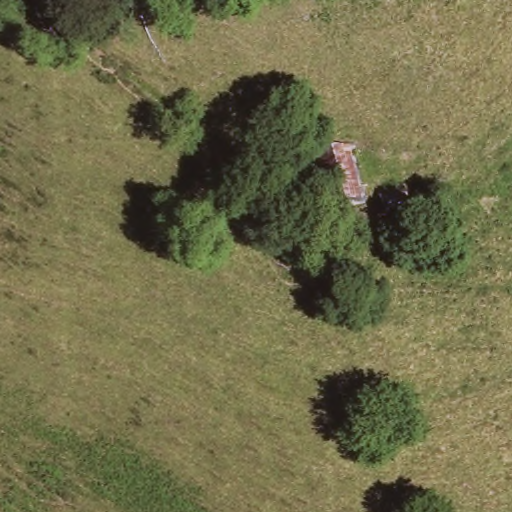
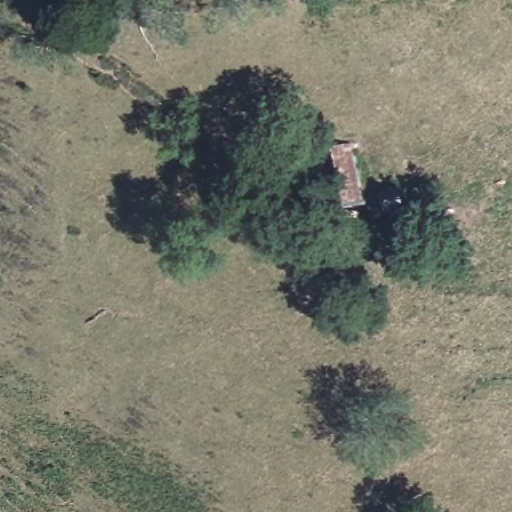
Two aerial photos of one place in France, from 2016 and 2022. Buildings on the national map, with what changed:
unchanged [(321,215),(315,189),(306,156),(348,146),(360,205),(321,215)]

